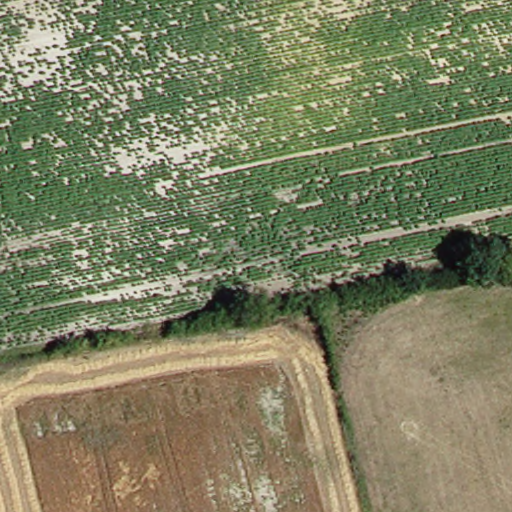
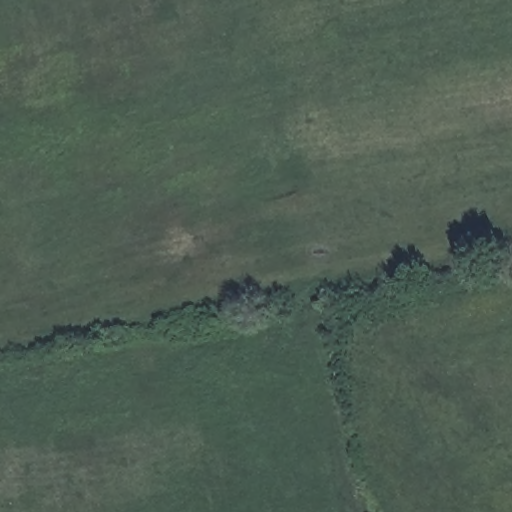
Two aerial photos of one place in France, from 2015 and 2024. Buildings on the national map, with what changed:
[]

